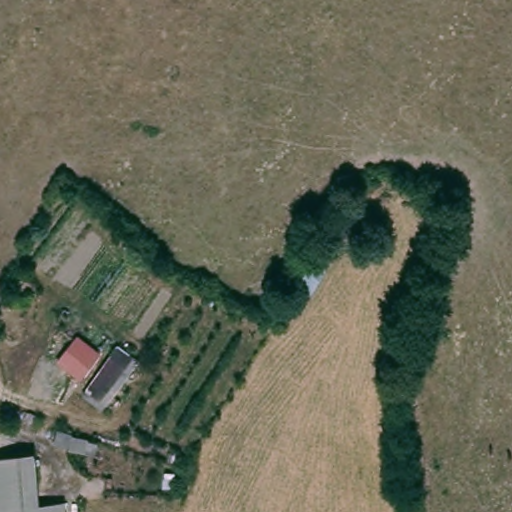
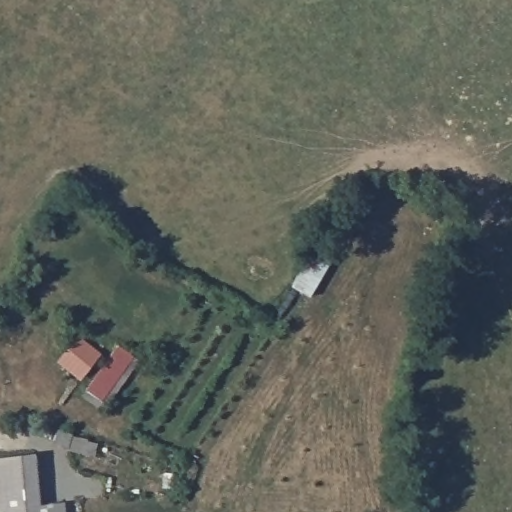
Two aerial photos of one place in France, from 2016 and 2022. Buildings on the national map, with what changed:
unchanged [(0,512),(0,454),(35,451),(40,499),(64,497),(66,512),(0,512)]

